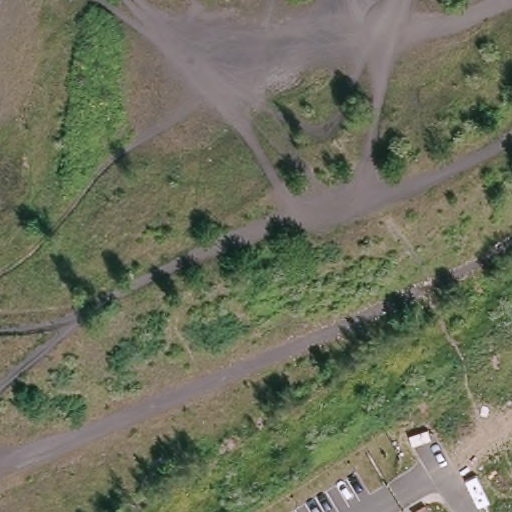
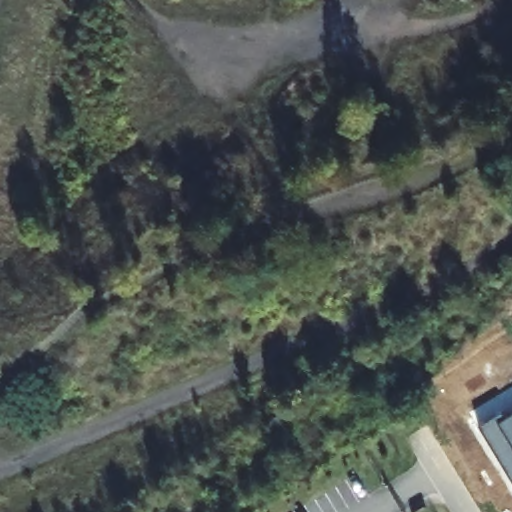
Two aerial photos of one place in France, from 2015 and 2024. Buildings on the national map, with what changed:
new [(503,412),(506,416),(512,412),(512,480),(479,426),(503,412)]

